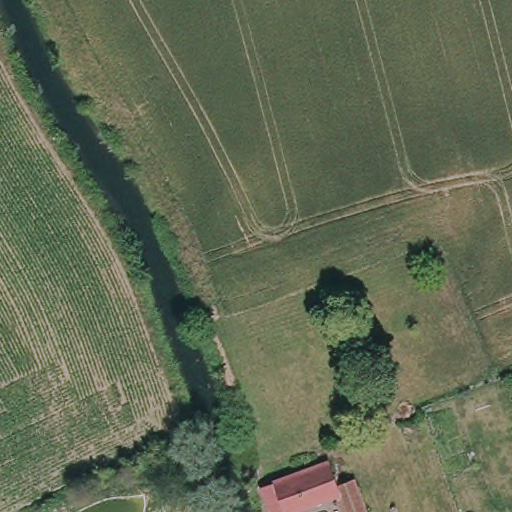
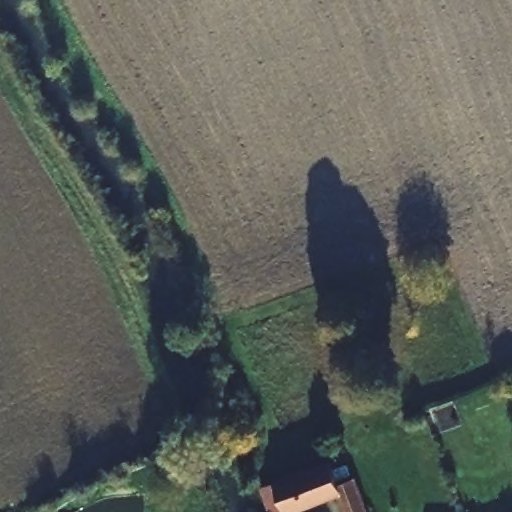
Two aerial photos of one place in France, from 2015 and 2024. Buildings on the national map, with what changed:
unchanged [(335,476),(352,470),(368,512),(347,512),(341,496),(299,512),(272,512),(265,490),(330,465),(335,476)]

